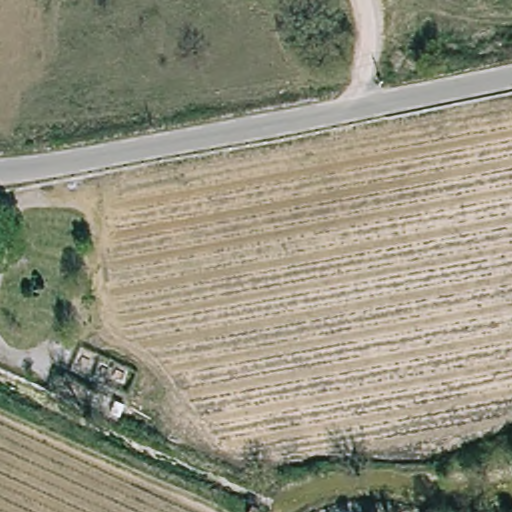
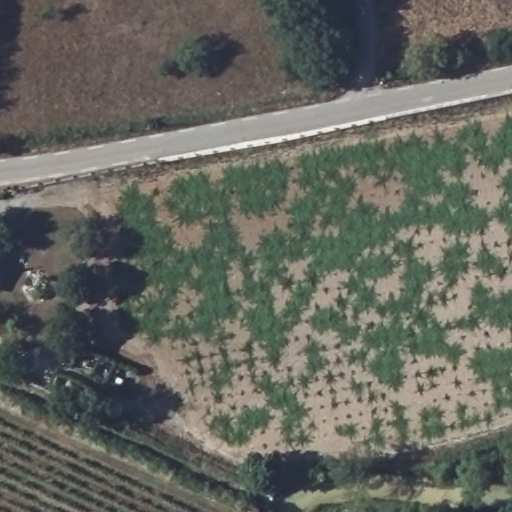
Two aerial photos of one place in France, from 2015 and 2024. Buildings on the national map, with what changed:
unchanged [(246,509),(255,512),(245,512),(246,509)]

